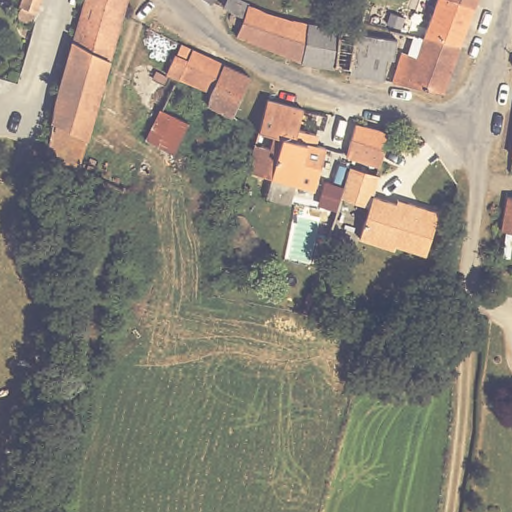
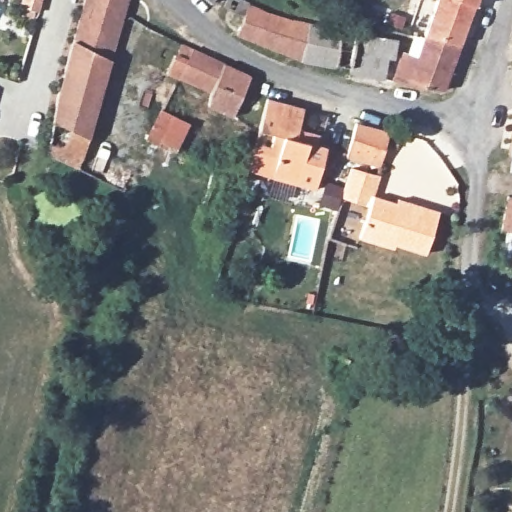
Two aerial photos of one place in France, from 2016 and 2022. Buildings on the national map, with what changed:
unchanged [(22,8),(24,0),(43,0),(39,14),(22,8)]
unchanged [(51,115),(71,44),(83,0),(126,0),(122,14),(87,136),(51,115)]
unchanged [(220,1),(222,0),(249,0),(287,17),(357,29),(351,64),(297,55),(215,20),(218,9),(224,5),(220,1)]
unchanged [(423,34),(436,0),(475,0),(458,41),(423,34)]
unchanged [(380,80),(359,76),(360,64),(351,64),(357,29),(390,34),(397,34),(395,50),(391,49),(389,61),(385,60),(382,76),(380,80)]
unchanged [(399,50),(415,54),(423,34),(458,41),(440,88),(392,79),(399,50)]
unchanged [(164,66),(172,48),(175,49),(180,36),(223,58),(209,88),(164,66)]
unchanged [(223,58),(251,71),(243,86),(233,110),(206,100),(209,88),(223,58)]
unchanged [(255,139),(264,142),(268,129),(254,124),(262,93),(298,103),(291,131),(322,139),(311,184),(248,168),(243,165),(250,139),(255,139)]
unchanged [(190,123),(173,154),(144,140),(158,111),(190,123)]
unchanged [(511,111),(512,112),(512,116),(510,116),(511,111)]
unchanged [(401,131),(398,144),(386,141),(381,161),(347,152),(356,119),(359,119),(375,124),(390,128),(401,131)]
unchanged [(512,142),(512,152),(510,152),(512,142)]
unchanged [(379,178),(373,199),(394,204),(396,200),(438,214),(426,258),(358,240),(368,207),(338,200),(348,169),(379,178)]
unchanged [(512,195),(512,226),(499,223),(504,193),(512,195)]

